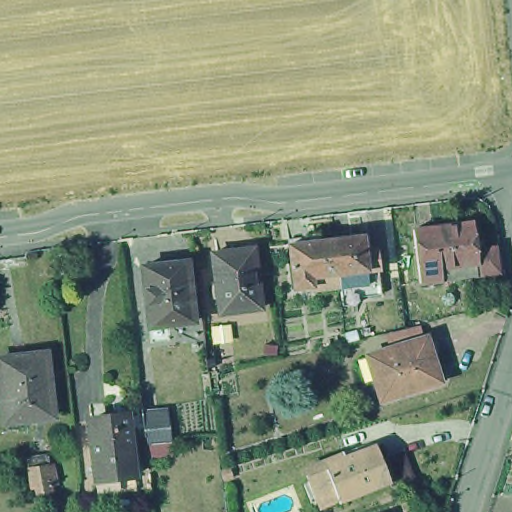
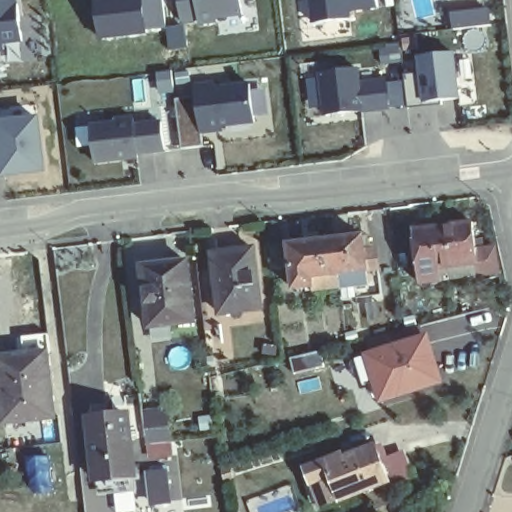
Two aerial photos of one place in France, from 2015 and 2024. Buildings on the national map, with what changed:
new [(166,29),(147,32),(97,40),(91,0),(162,0),(166,29)]
new [(200,24),(201,17),(182,19),(181,0),(241,0),(242,15),(217,18),(217,22),(200,24)]
new [(376,11),(347,13),(348,23),(310,26),(307,0),(375,0),(376,11)]
new [(15,7),(17,7),(21,44),(2,46),(3,53),(0,53),(0,5),(14,3),(15,7)]
new [(490,27),(450,31),(448,15),(487,11),(490,27)]
new [(186,48),(167,50),(166,29),(182,25),(186,48)]
new [(408,109),(405,75),(418,74),(416,59),(455,53),(461,99),(439,102),(442,105),(408,109)]
new [(364,113),(325,117),(320,73),(359,69),(361,82),(387,80),(391,110),(364,113)]
new [(179,150),(173,100),(191,100),(190,94),(249,88),(254,126),(221,127),(222,134),(200,135),(200,147),(179,150)]
new [(165,150),(137,153),(137,158),(96,163),(92,127),(116,125),(116,120),(134,118),(135,126),(162,121),(165,150)]
new [(0,123),(35,120),(42,176),(0,182),(0,123)]
unchanged [(475,222),(479,250),(498,246),(502,272),(481,277),(479,276),(445,282),(436,229),(475,222)]
unchanged [(425,285),(417,231),(436,229),(445,282),(425,285)]
unchanged [(315,286),(296,289),(294,290),(287,243),(289,243),(304,241),(304,235),(314,233),(315,240),(328,238),(357,234),(357,235),(363,234),(365,248),(370,247),(373,267),(377,291),(337,299),(335,283),(315,286)]
unchanged [(284,253),(287,271),(275,272),(272,255),(284,253)]
unchanged [(249,260),(257,320),(216,325),(208,266),(249,260)]
unchanged [(187,269),(196,328),(149,335),(142,275),(187,269)]
unchanged [(424,337),(440,381),(382,401),(365,357),(424,337)]
unchanged [(56,419),(6,424),(0,370),(0,361),(48,355),(56,419)]
unchanged [(165,412),(168,445),(144,447),(141,415),(165,412)]
unchanged [(82,426),(82,422),(124,417),(132,477),(90,482),(83,425),(82,426)]
unchanged [(314,485),(307,471),(327,463),(346,455),(347,458),(380,446),(386,461),(408,452),(416,472),(394,481),(395,483),(342,502),(324,510),(314,485)]
unchanged [(50,457),(52,469),(51,469),(55,494),(39,497),(38,491),(32,492),(29,461),(50,457)]

